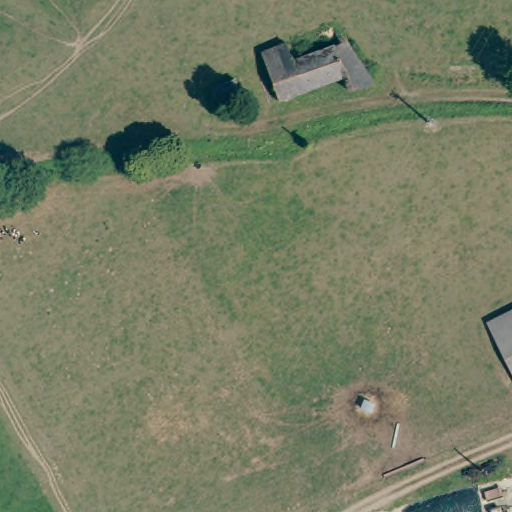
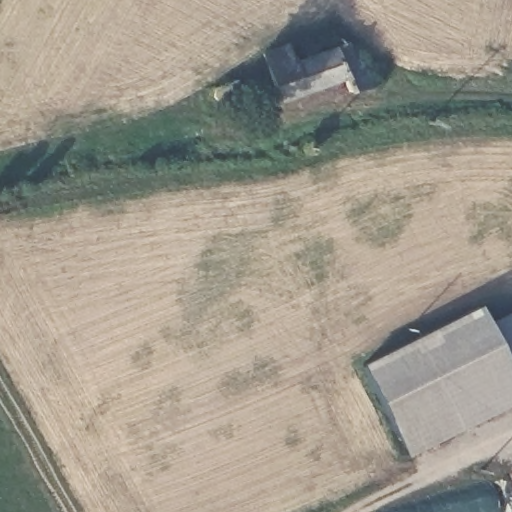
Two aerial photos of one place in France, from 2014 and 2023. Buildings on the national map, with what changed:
unchanged [(266,55),(290,45),(296,62),(351,42),(379,86),(354,92),(349,78),(284,101),(266,55)]
unchanged [(219,102),(215,100),(213,96),(213,91),(214,89),(235,80),(241,94),(219,102)]
new [(360,364),(478,304),(488,325),(512,372),(512,403),(407,457),(360,364)]
unchanged [(512,313),(512,372),(488,325),(512,313)]

